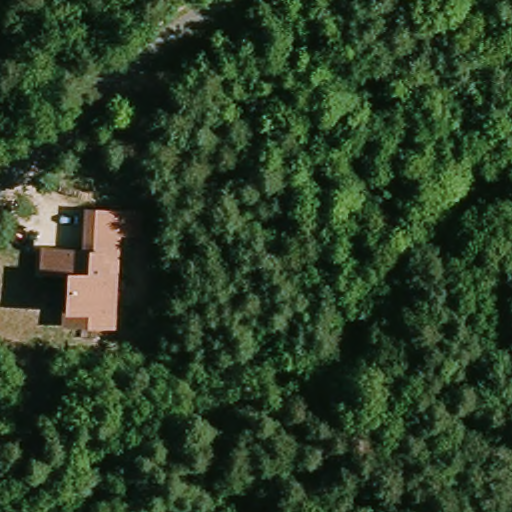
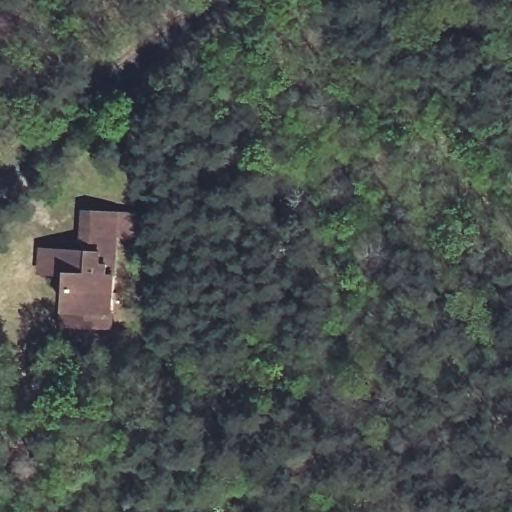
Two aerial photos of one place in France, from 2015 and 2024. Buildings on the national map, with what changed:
unchanged [(40,275),(40,247),(83,247),(84,207),(122,210),(119,274),(117,316),(116,329),(62,327),(63,275),(40,275)]

